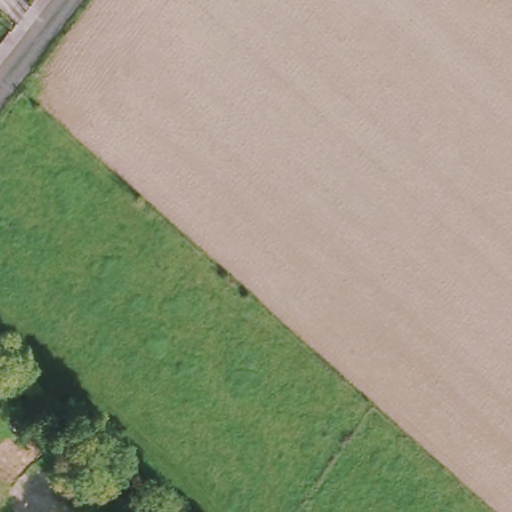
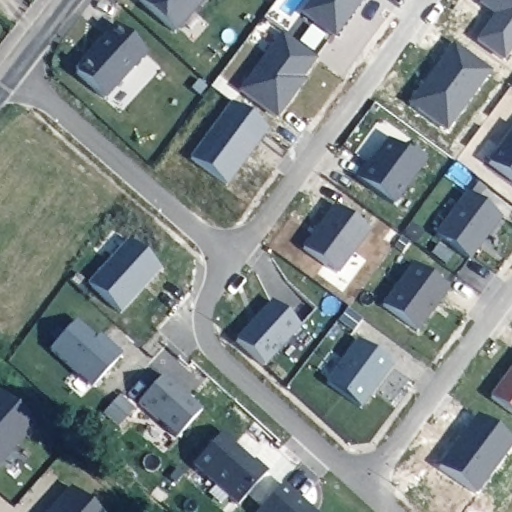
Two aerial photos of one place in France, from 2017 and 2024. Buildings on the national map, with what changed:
new [(173,33),(138,1),(139,0),(203,0),(173,33)]
new [(333,39),(300,16),(312,0),(361,0),(333,39)]
new [(502,62),(475,41),(492,16),(478,5),(481,0),(512,0),(512,50),(502,62)]
new [(85,58),(92,51),(92,50),(105,36),(105,37),(115,25),(146,53),(104,99),(76,74),(76,68),(85,57),(85,58)]
new [(297,89),(275,118),(240,91),(282,33),(315,58),(294,86),(300,79),(303,80),(297,89)]
new [(452,44),(490,72),(445,134),(407,106),(452,44)]
new [(255,143),(226,185),(192,159),(222,118),(255,143)]
new [(487,162),(512,130),(512,182),(487,162)]
new [(365,163),(369,166),(388,140),(402,150),(407,148),(425,161),(392,205),(355,178),(365,163)]
new [(500,217),(468,260),(435,235),(467,193),(500,217)]
new [(369,231),(337,274),(302,249),(335,205),(369,231)]
new [(158,270),(126,313),(92,288),(124,244),(158,270)]
new [(451,291),(418,335),(385,309),(417,266),(451,291)]
new [(298,328),(263,367),(235,341),(251,325),(252,326),(259,320),(257,318),(271,303),(298,328)]
new [(75,322),(95,338),(98,336),(121,356),(91,387),(50,349),(75,322)]
new [(390,364),(358,407),(326,382),(357,340),(390,364)]
new [(488,396),(512,364),(512,414),(488,396)]
new [(200,410),(175,437),(137,403),(162,375),(200,410)]
new [(0,461),(0,393),(34,423),(0,461)]
new [(132,408),(117,426),(102,413),(118,395),(132,408)]
new [(474,496),(437,469),(475,415),(512,443),(512,448),(474,496)]
new [(235,504),(192,464),(220,433),(265,473),(235,504)]
new [(311,512),(260,512),(283,487),(311,512)]
new [(95,512),(49,512),(70,489),(95,512)]

